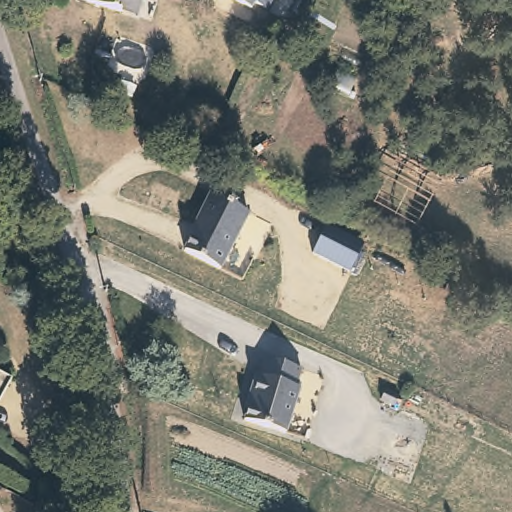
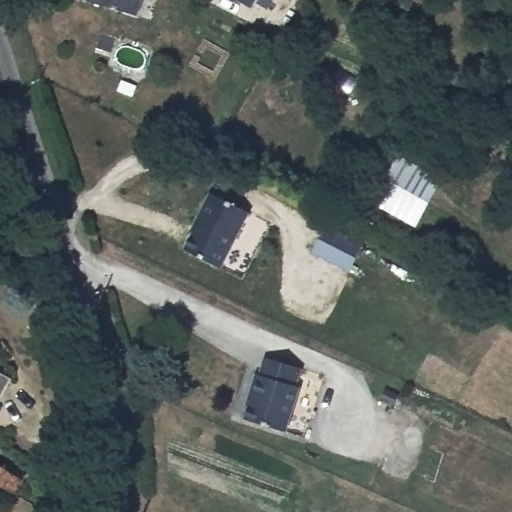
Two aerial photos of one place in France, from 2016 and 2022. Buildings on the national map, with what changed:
unchanged [(115,6),(96,0),(135,0),(131,11),(115,6)]
unchanged [(246,2),(242,0),(247,0),(246,2)]
new [(368,201),(396,154),(442,180),(415,229),(368,201)]
unchanged [(250,215),(221,270),(186,252),(200,225),(197,224),(212,195),(250,215)]
unchanged [(350,245),(336,273),(298,255),(312,226),(350,245)]
unchanged [(303,365),(298,383),(301,384),(288,428),(247,416),(253,395),(251,394),(258,371),(261,372),(267,355),(303,365)]
unchanged [(5,377),(0,386),(0,375),(5,377)]
unchanged [(383,395),(379,405),(368,400),(372,391),(383,395)]

